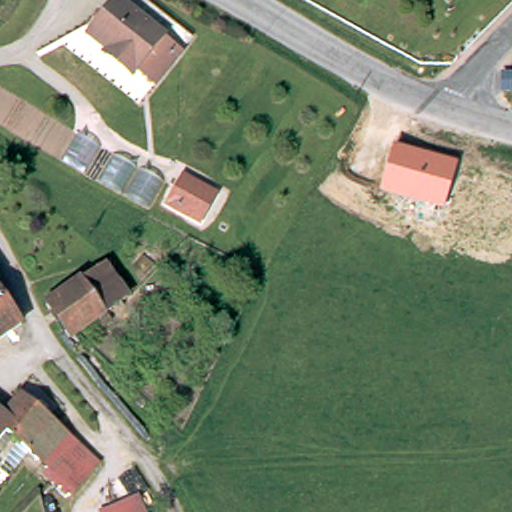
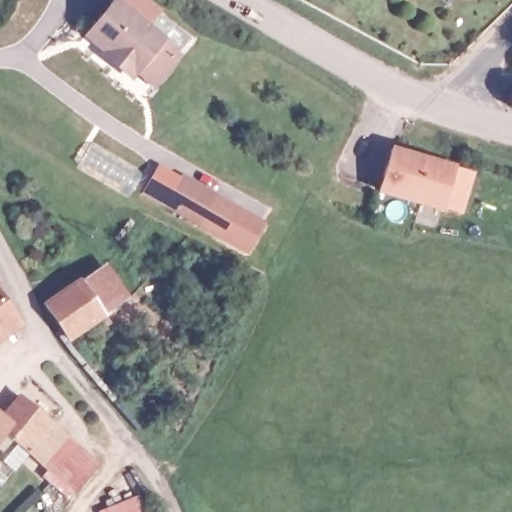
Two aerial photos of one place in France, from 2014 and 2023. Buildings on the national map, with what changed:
unchanged [(80,32),(82,30),(109,1),(130,21),(143,7),(181,44),(170,56),(154,74),(141,87),(124,72),(122,75),(107,61),(78,33),(80,32)]
unchanged [(457,164),(445,211),(380,192),(393,145),(457,164)]
unchanged [(220,192),(201,226),(165,205),(183,174),(220,192)]
new [(267,220),(248,254),(201,226),(220,192),(267,220)]
unchanged [(128,281),(65,330),(42,301),(106,252),(128,281)]
unchanged [(0,330),(0,290),(20,315),(0,330)]
unchanged [(25,446),(4,430),(10,422),(1,413),(16,394),(47,417),(60,427),(95,456),(73,485),(32,453),(25,446)]
unchanged [(4,430),(0,426),(0,412),(1,413),(10,422),(4,430)]
unchanged [(141,490),(148,512),(99,512),(98,510),(141,490)]

